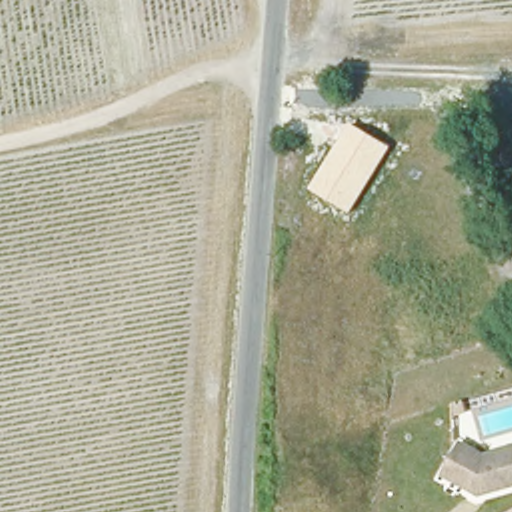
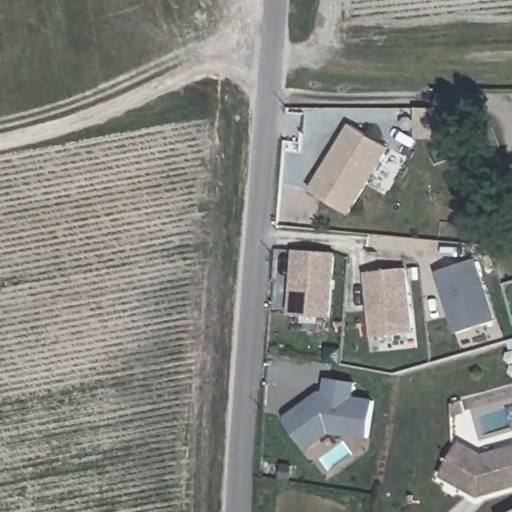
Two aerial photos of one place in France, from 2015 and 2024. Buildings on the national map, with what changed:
new [(413,109),(429,108),(436,129),(439,137),(415,138),(415,130),(413,109)]
unchanged [(351,215),(309,189),(349,122),(391,148),(351,215)]
new [(289,314),(294,249),(337,252),(332,316),(289,314)]
new [(455,333),(436,271),(477,258),(497,319),(455,333)]
new [(371,337),(364,272),(408,267),(415,331),(371,337)]
new [(307,402),(318,394),(323,394),(324,379),(351,382),(349,396),(372,399),(368,436),(327,432),(305,449),(286,425),(286,419),(307,402)]
unchanged [(512,485),(488,491),(486,487),(475,491),(442,472),(459,439),(484,453),(512,445),(512,485)]

